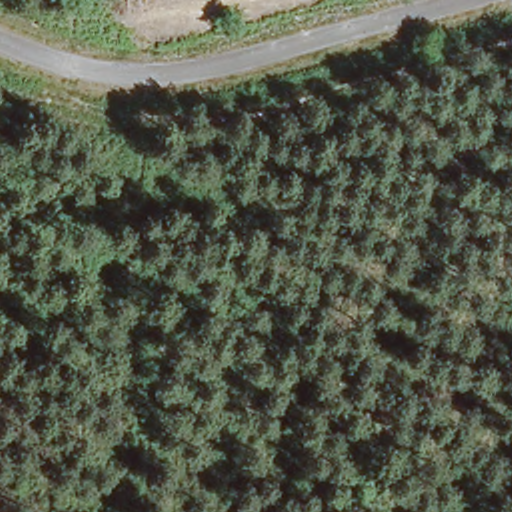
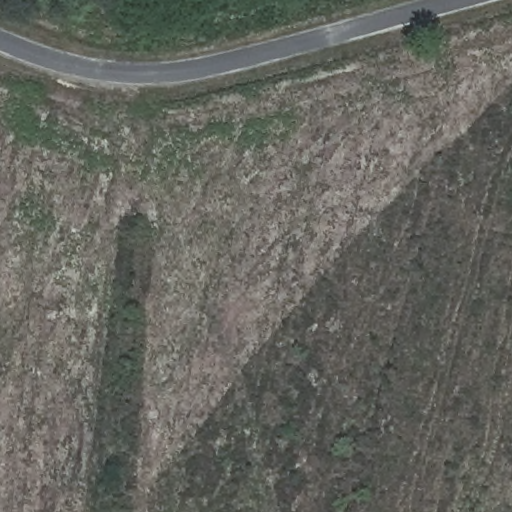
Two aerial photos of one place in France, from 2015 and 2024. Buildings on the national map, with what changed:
[]

